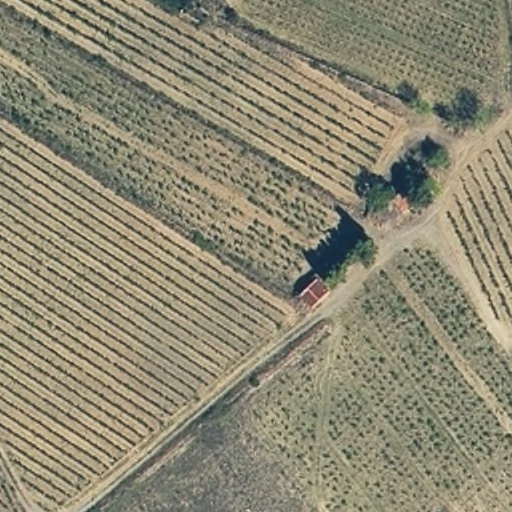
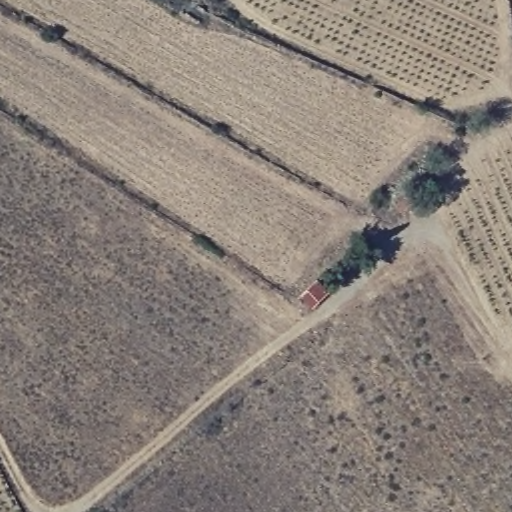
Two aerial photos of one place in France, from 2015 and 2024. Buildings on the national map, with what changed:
unchanged [(398,185),(412,196),(402,210),(387,195),(398,185)]
unchanged [(317,276),(327,288),(310,300),(300,287),(317,276)]

